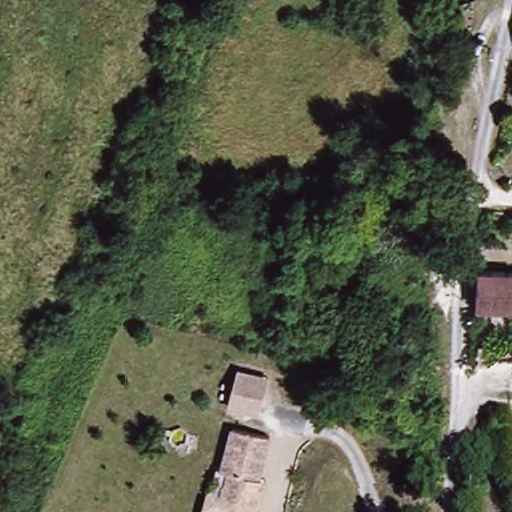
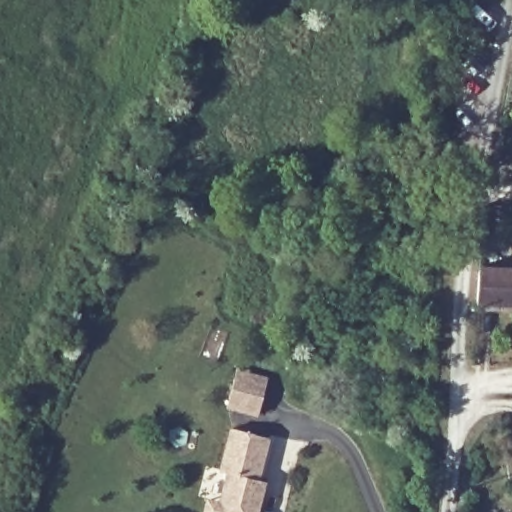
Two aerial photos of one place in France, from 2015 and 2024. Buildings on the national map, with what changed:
unchanged [(477,300),(480,268),(512,270),(512,302),(477,300)]
unchanged [(266,417),(235,410),(244,373),(275,382),(266,417)]
unchanged [(206,504),(218,507),(226,475),(220,473),(230,431),(269,441),(258,483),(265,485),(263,492),(257,512),(203,512),(206,504)]

